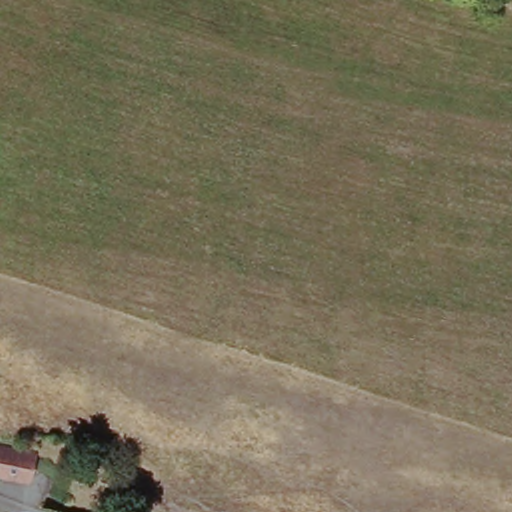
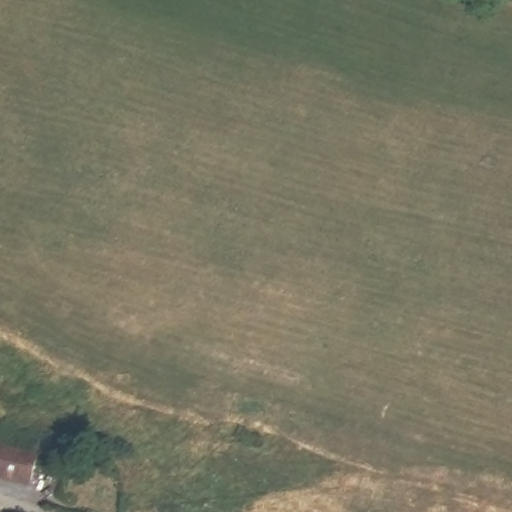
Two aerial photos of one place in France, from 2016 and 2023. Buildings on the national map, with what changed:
unchanged [(47,461),(39,491),(0,480),(0,449),(47,461)]

